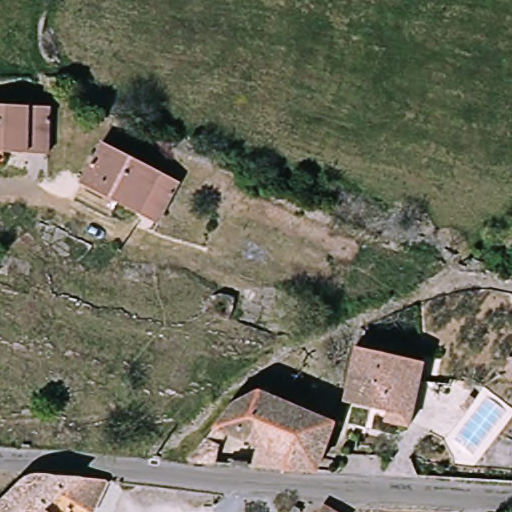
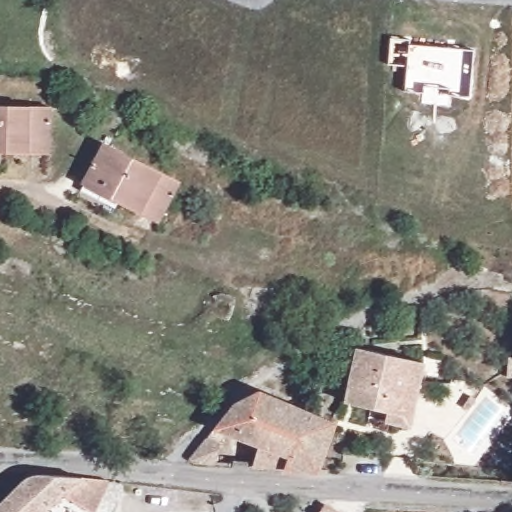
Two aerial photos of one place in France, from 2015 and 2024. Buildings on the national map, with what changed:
new [(409,44),(474,48),(469,96),(448,94),(448,88),(424,87),(423,92),(403,90),(405,66),(387,64),(388,38),(409,40),(409,44)]
unchanged [(0,150),(0,105),(54,109),(50,154),(0,150)]
unchanged [(82,186),(100,145),(181,183),(162,223),(82,186)]
unchanged [(407,391),(350,376),(358,347),(432,368),(424,395),(407,391)]
unchanged [(424,412),(417,426),(415,425),(412,430),(390,424),(392,417),(343,404),(350,376),(407,391),(424,395),(422,406),(421,410),(424,412)]
unchanged [(244,410),(268,394),(338,428),(315,474),(290,471),(297,452),(227,428),(244,410)]
unchanged [(228,446),(217,466),(184,462),(205,439),(228,446)]
unchanged [(50,510),(48,512),(3,512),(40,477),(84,478),(50,510)]
unchanged [(50,510),(84,478),(117,482),(102,512),(56,512),(50,510)]
unchanged [(341,512),(319,512),(325,502),(341,512)]

